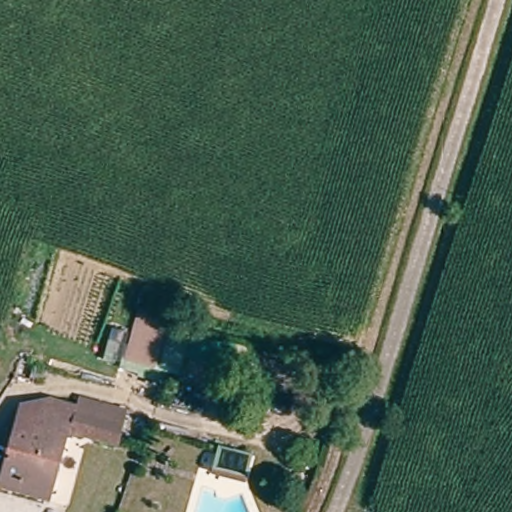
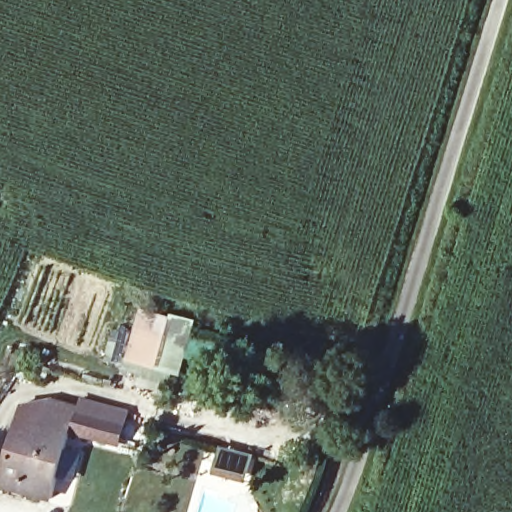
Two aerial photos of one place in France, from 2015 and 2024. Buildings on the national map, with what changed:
unchanged [(188,326),(176,372),(125,358),(137,312),(188,326)]
unchanged [(14,409),(19,390),(73,403),(67,423),(14,409)]
unchanged [(73,403),(121,416),(115,436),(67,423),(73,403)]
unchanged [(0,475),(0,463),(14,409),(67,423),(48,489),(0,475)]
unchanged [(249,456),(243,478),(212,469),(219,447),(249,456)]

